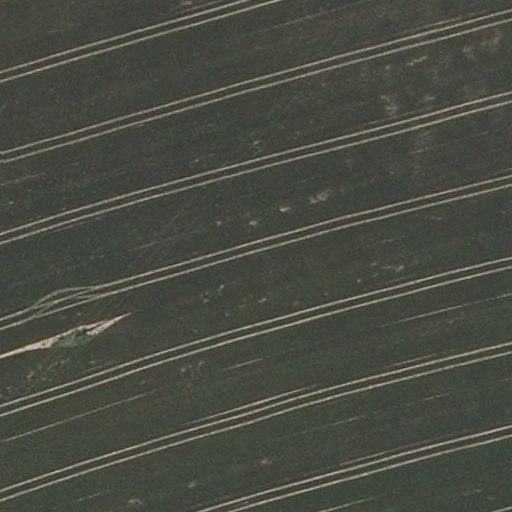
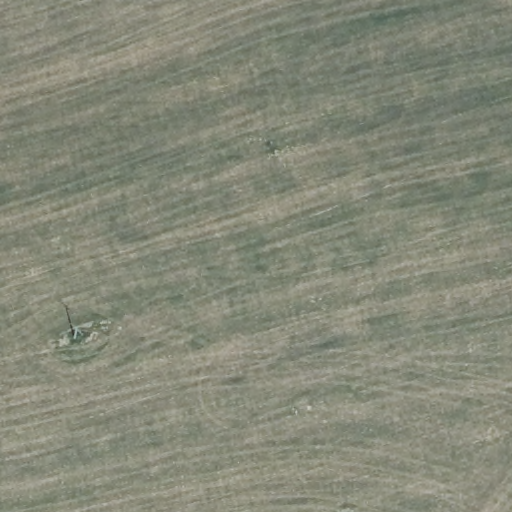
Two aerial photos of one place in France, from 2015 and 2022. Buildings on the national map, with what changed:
[]

